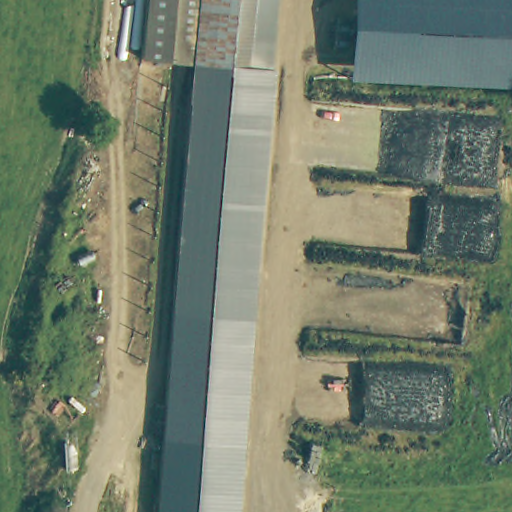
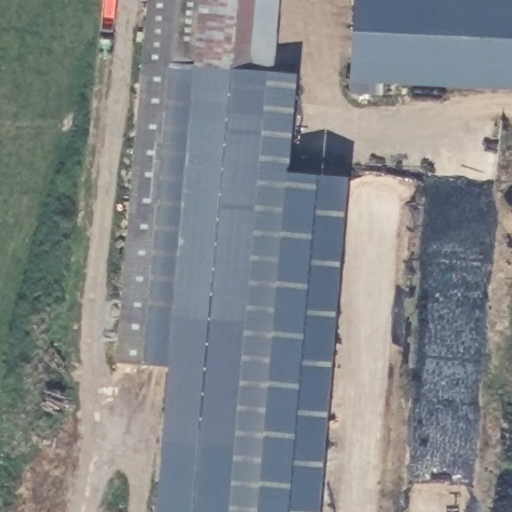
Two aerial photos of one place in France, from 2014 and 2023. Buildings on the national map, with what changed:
unchanged [(144,56),(148,0),(266,0),(266,6),(272,12),(263,113),(190,118),(195,61),(144,56)]
unchanged [(353,0),(512,0),(512,87),(350,80),(353,0)]
new [(144,56),(195,61),(190,118),(182,209),(175,300),(169,365),(115,362),(144,56)]
new [(243,448),(235,447),(247,311),(254,226),(263,113),(267,70),(296,73),(288,171),(350,177),(320,512),(238,512),(243,448)]
unchanged [(247,311),(175,300),(190,118),(263,113),(247,311)]
unchanged [(247,311),(235,447),(162,440),(175,300),(247,311)]
unchanged [(235,447),(243,448),(238,512),(155,512),(162,440),(235,447)]

